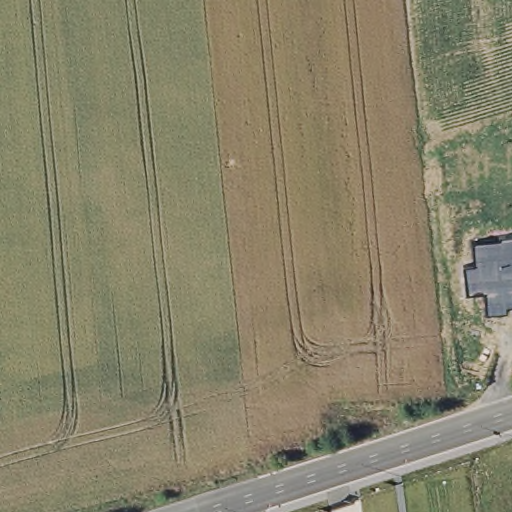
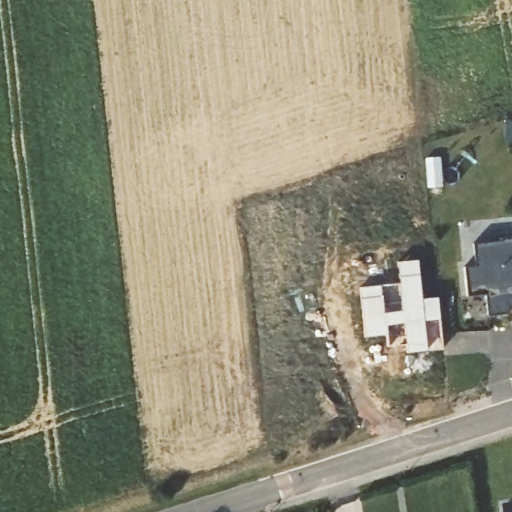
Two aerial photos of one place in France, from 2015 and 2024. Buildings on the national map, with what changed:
unchanged [(502,241),(502,238),(512,237),(512,308),(506,309),(506,314),(487,316),(485,295),(466,297),(463,267),(474,266),(472,244),(502,241)]
new [(400,284),(397,262),(416,260),(422,299),(436,298),(439,320),(442,351),(407,354),(405,344),(387,346),(386,335),(364,338),(360,288),(400,284)]
new [(512,507),(512,512),(510,512),(510,508),(512,507)]

